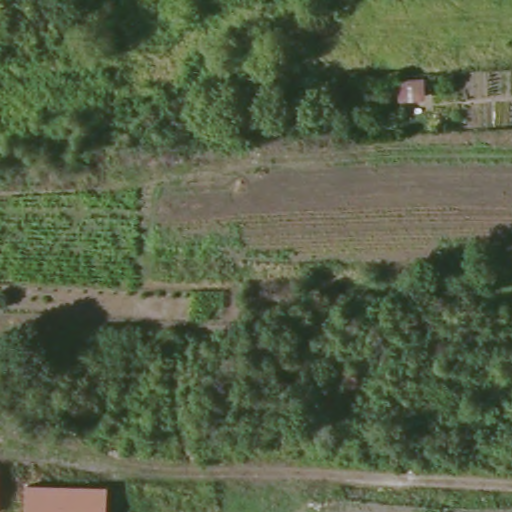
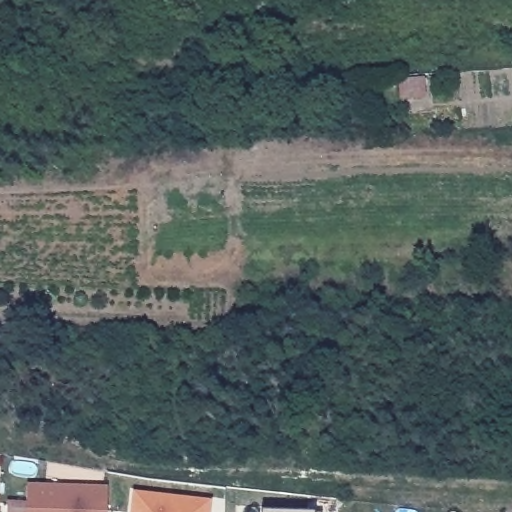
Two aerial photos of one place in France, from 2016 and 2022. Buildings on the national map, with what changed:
unchanged [(422,74),(423,96),(398,99),(399,76),(422,74)]
unchanged [(27,483),(108,485),(107,512),(26,512),(27,483)]
new [(135,493),(210,502),(208,512),(132,512),(135,493)]

